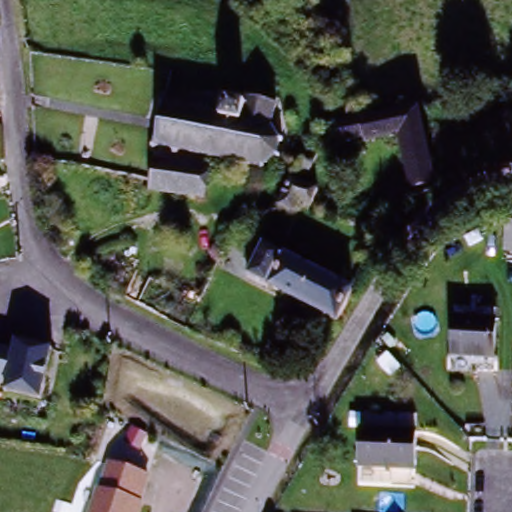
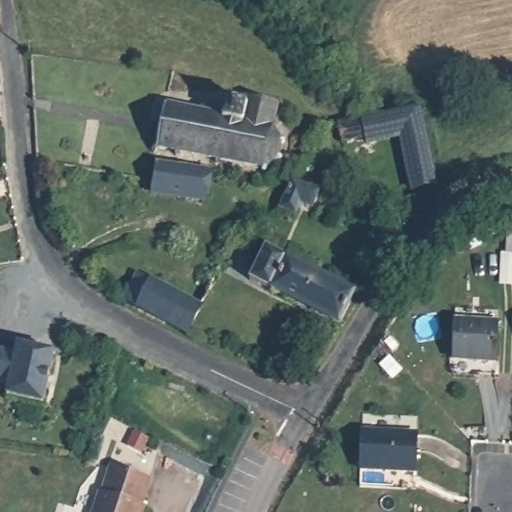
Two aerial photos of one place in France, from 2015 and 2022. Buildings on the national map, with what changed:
unchanged [(281,133),(289,148),(284,168),(274,178),(162,156),(171,110),(224,120),(227,104),(246,108),(249,98),(274,103),(267,130),(281,133)]
unchanged [(405,146),(370,150),(370,142),(344,146),(341,139),(327,141),(314,174),(301,179),(293,181),(315,126),(357,122),(425,114),(437,182),(412,189),(405,146)]
unchanged [(157,179),(161,164),(210,175),(204,205),(155,194),(157,179)]
unchanged [(300,214),(282,205),(293,181),(320,194),(312,208),(304,205),(300,214)]
unchanged [(266,250),(362,296),(345,327),(252,282),(266,250)]
demolished [(190,332),(142,310),(153,283),(202,304),(190,332)]
unchanged [(460,327),(500,328),(499,363),(459,363),(460,327)]
unchanged [(12,348),(12,340),(59,348),(50,399),(2,391),(0,390),(0,347),(12,348)]
unchanged [(419,435),(414,484),(360,478),(365,429),(419,435)]
unchanged [(99,492),(102,493),(110,468),(152,481),(145,506),(146,506),(144,512),(92,512),(99,492)]

